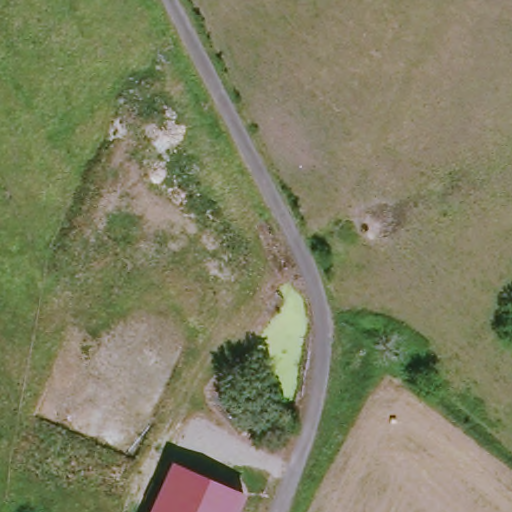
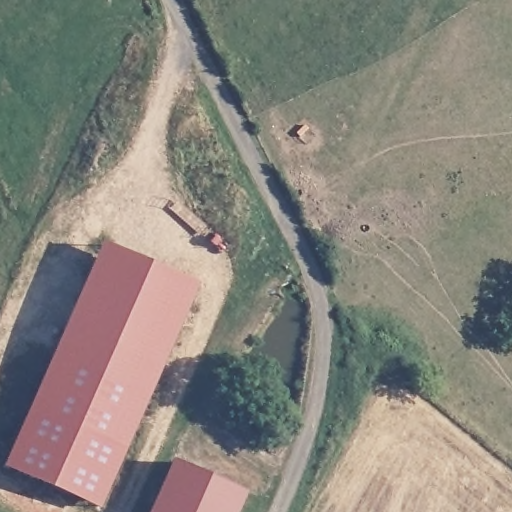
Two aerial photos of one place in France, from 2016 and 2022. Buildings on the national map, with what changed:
new [(102,243),(198,285),(100,509),(4,467),(102,243)]
unchanged [(252,498),(245,512),(159,512),(181,465),(252,498)]

